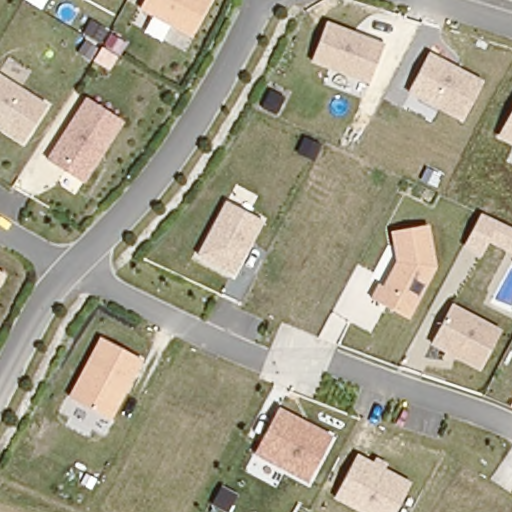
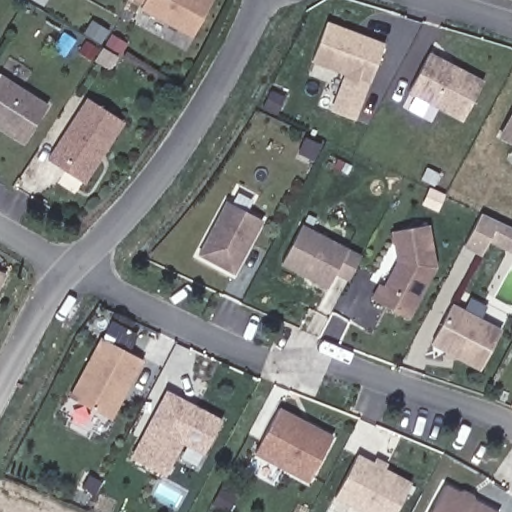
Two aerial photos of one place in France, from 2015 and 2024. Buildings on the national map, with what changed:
unchanged [(142,12),(149,0),(213,0),(192,38),(142,12)]
unchanged [(330,21),(386,43),(371,85),(314,65),(330,21)]
unchanged [(433,52),(486,81),(463,122),(410,95),(433,52)]
unchanged [(26,144),(0,128),(0,73),(1,72),(52,105),(26,144)]
unchanged [(86,184),(49,159),(89,97),(127,122),(86,184)]
unchanged [(512,146),(498,139),(512,114),(512,146)]
unchanged [(229,202),(265,221),(237,275),(199,257),(229,202)]
unchanged [(512,253),(491,244),(482,256),(466,247),(483,214),(512,227),(512,253)]
unchanged [(378,284),(385,287),(399,260),(392,231),(432,224),(440,268),(412,320),(371,301),(378,284)]
new [(282,265),(303,225),(347,248),(362,257),(350,281),(336,273),(327,288),(282,265)]
unchanged [(0,287),(0,271),(7,274),(0,287)]
unchanged [(505,329),(482,371),(457,358),(442,360),(446,353),(432,347),(455,303),(505,329)]
unchanged [(146,361),(114,421),(71,397),(102,338),(146,361)]
new [(183,445),(167,477),(131,458),(167,390),(224,420),(205,455),(183,445)]
unchanged [(281,408),(334,437),(308,482),(255,456),(281,408)]
unchanged [(413,485),(400,512),(365,512),(339,498),(360,456),(413,485)]
new [(464,489),(474,495),(476,499),(500,512),(431,512),(445,484),(460,492),(464,489)]

